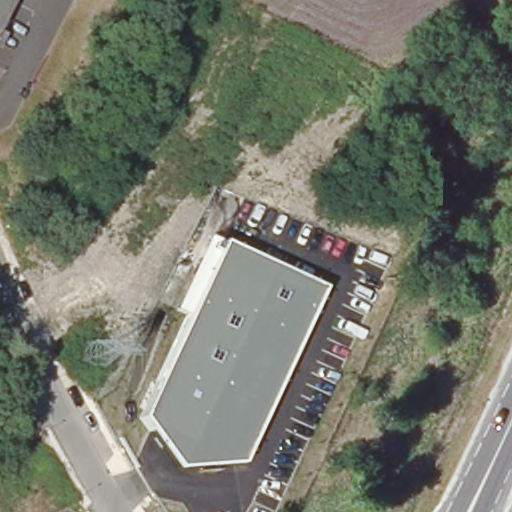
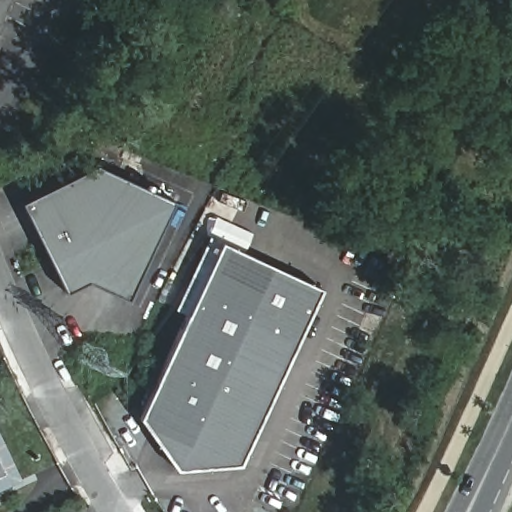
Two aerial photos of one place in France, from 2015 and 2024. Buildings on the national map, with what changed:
unchanged [(13,0),(0,26),(0,0),(13,0)]
unchanged [(4,35),(0,43),(0,33),(4,35)]
new [(129,298),(87,279),(66,290),(25,201),(98,165),(172,202),(129,298)]
unchanged [(223,242),(321,288),(240,463),(176,468),(140,417),(187,316),(175,308),(210,236),(223,242)]
new [(21,481),(0,490),(0,437),(21,481)]

